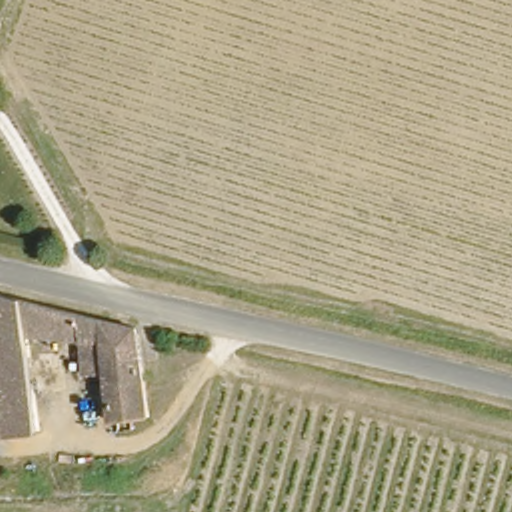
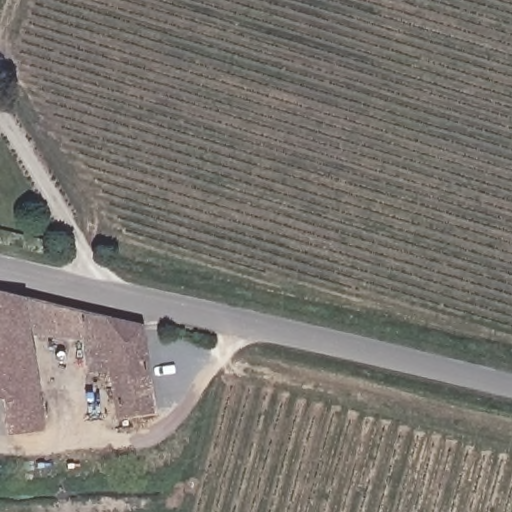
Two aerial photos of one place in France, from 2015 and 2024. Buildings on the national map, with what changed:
unchanged [(52,301),(145,322),(154,408),(144,410),(139,411),(139,420),(127,422),(125,412),(118,412),(112,371),(89,369),(86,341),(37,332),(45,432),(44,432),(9,436),(5,396),(0,396),(0,288),(52,301)]

